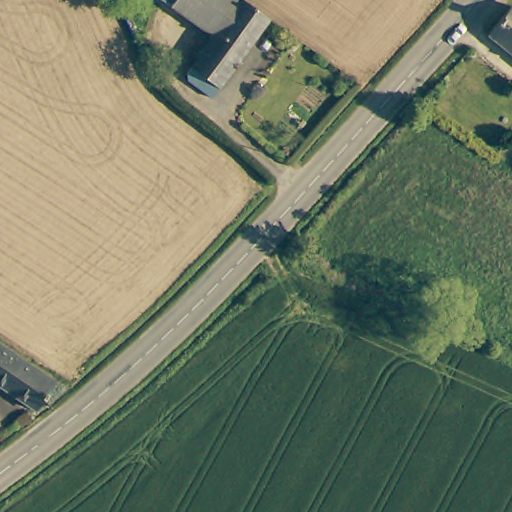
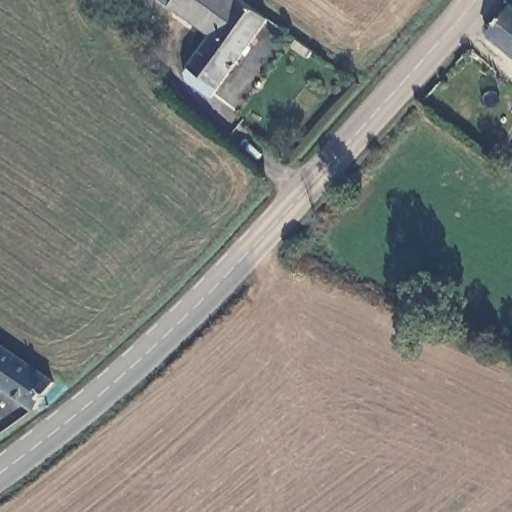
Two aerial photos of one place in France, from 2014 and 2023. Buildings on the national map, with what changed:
unchanged [(212,35),(212,34),(168,2),(165,0),(235,0),(212,35)]
unchanged [(188,80),(188,79),(187,72),(190,68),(212,35),(235,0),(244,0),(267,16),(212,98),(188,80)]
unchanged [(512,16),(512,51),(495,38),(512,16)]
unchanged [(47,384),(27,415),(0,395),(0,348),(47,384)]

